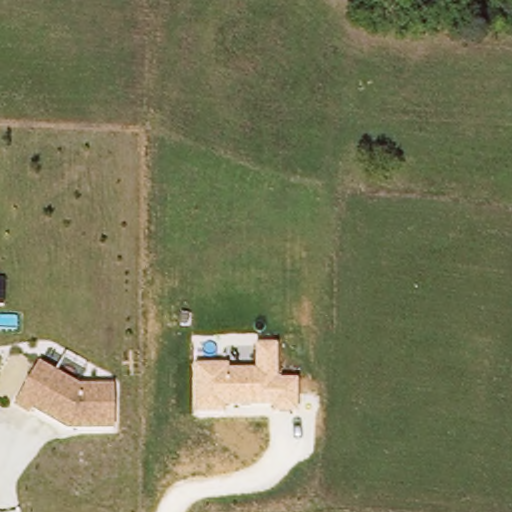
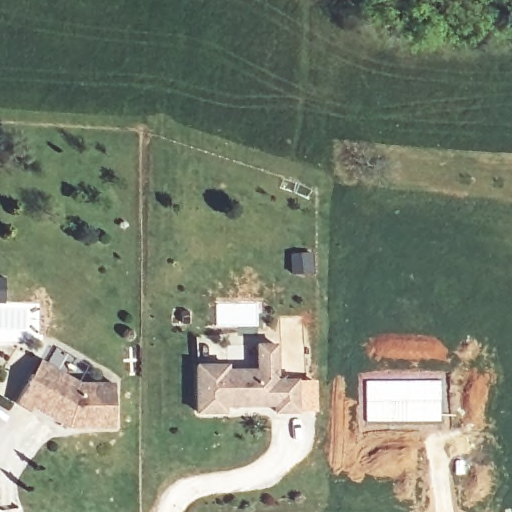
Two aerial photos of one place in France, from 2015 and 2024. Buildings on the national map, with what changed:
unchanged [(255,343),(278,343),(278,377),(298,378),(298,413),(275,413),(275,405),(225,405),(225,413),(196,412),(195,363),(228,362),(228,368),(255,368),(255,343)]
unchanged [(118,429),(70,428),(36,410),(34,414),(17,405),(42,358),(82,381),(116,382),(118,429)]
new [(366,380),(443,378),(442,422),(366,421),(366,380)]

